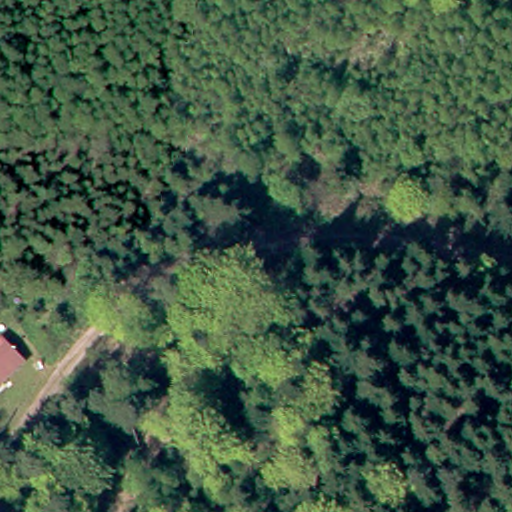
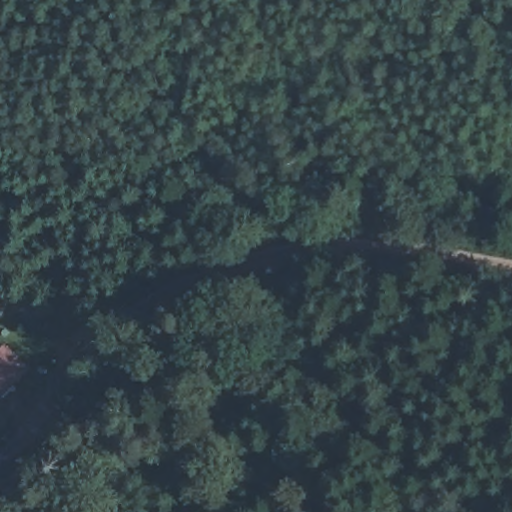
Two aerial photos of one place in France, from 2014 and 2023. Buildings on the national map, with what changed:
unchanged [(26,360),(0,380),(0,345),(10,337),(26,360)]

